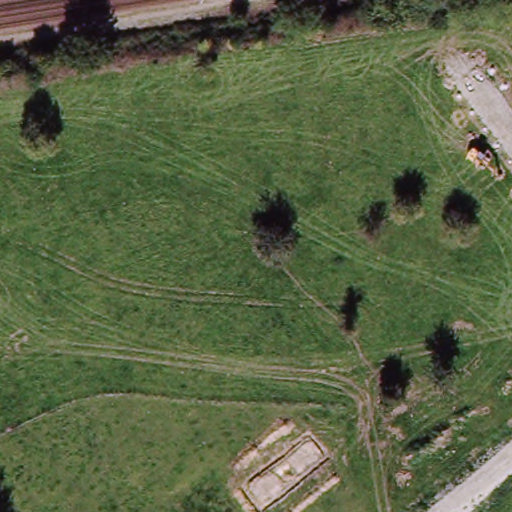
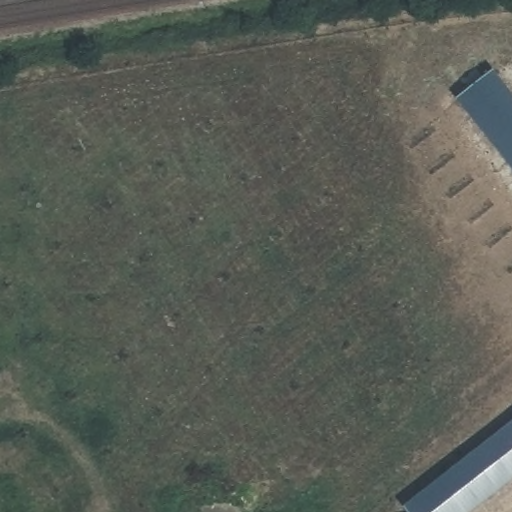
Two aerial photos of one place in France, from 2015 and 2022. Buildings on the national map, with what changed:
new [(497,68),(512,89),(512,164),(461,95),(497,68)]
new [(464,512),(407,512),(402,505),(512,422),(512,476),(464,512)]

